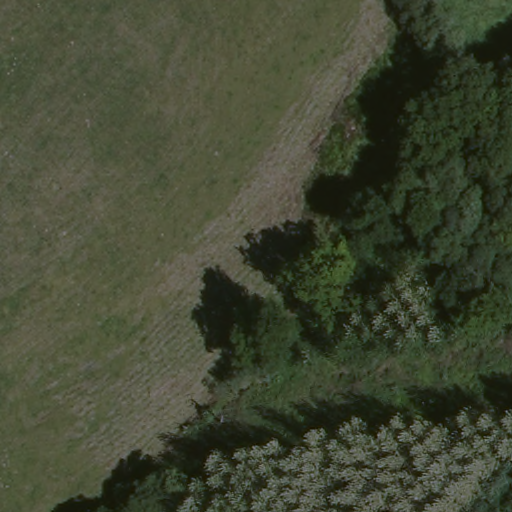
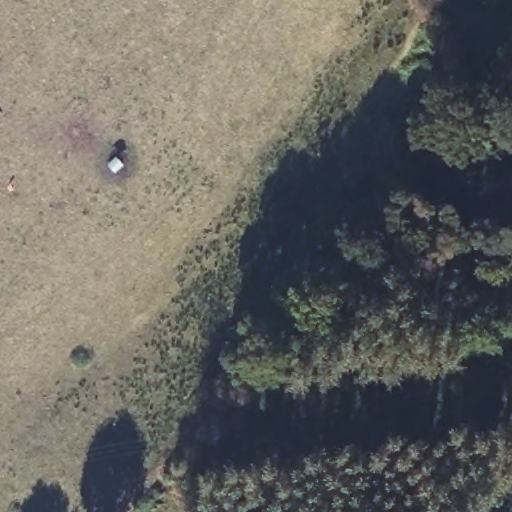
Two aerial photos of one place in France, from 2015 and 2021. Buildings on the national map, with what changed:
[]

